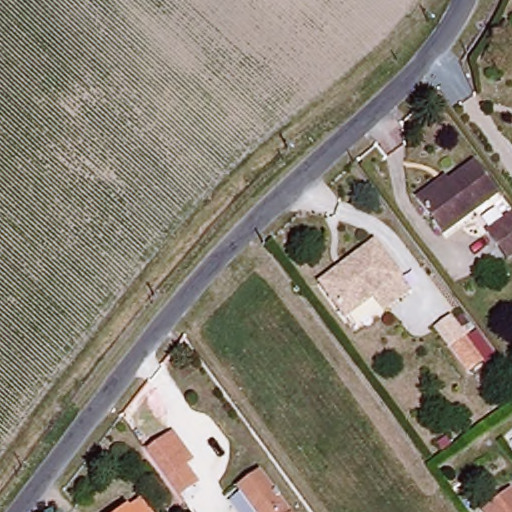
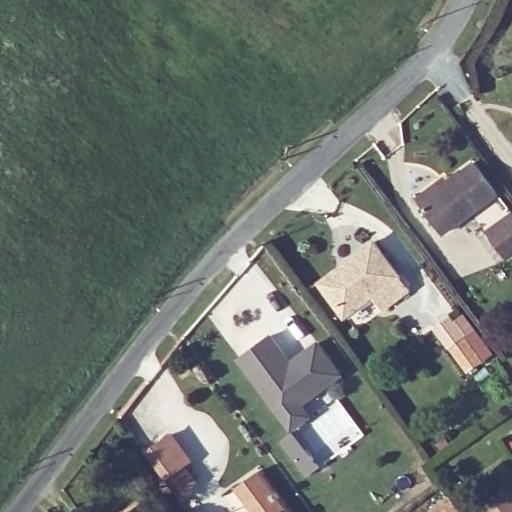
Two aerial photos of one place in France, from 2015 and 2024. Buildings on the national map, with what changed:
unchanged [(199,44),(189,63),(166,50),(175,32),(199,44)]
unchanged [(498,197),(443,236),(419,204),(412,195),(442,173),(449,181),(473,163),(498,197)]
unchanged [(512,229),(512,267),(510,269),(492,243),(512,229)]
unchanged [(409,293),(383,312),(372,300),(345,320),(323,290),(317,283),(341,266),(372,243),(409,293)]
new [(271,336),(290,362),(317,343),(341,374),(300,405),(310,417),(292,430),(241,359),(271,336)]
unchanged [(464,337),(482,363),(468,373),(450,347),(464,337)]
unchanged [(194,458),(187,464),(202,482),(180,500),(142,454),(171,432),(194,458)]
unchanged [(232,487),(255,469),(287,512),(250,512),(241,500),(232,487)]
unchanged [(512,504),(512,512),(495,512),(510,501),(512,504)]
unchanged [(139,512),(123,512),(134,505),(139,512)]

